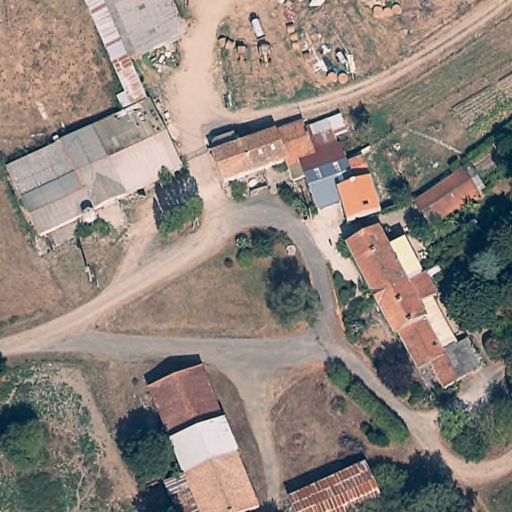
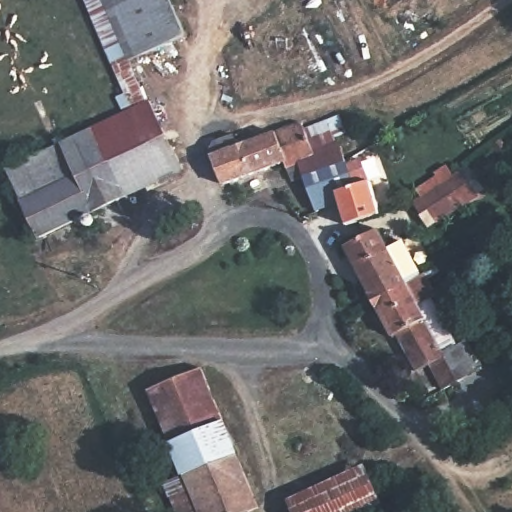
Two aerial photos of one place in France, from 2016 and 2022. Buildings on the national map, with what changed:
unchanged [(117,62),(90,0),(107,0),(130,56),(117,62)]
unchanged [(131,61),(130,56),(107,0),(172,0),(188,37),(131,61)]
unchanged [(25,202),(74,177),(80,174),(65,144),(89,132),(151,104),(186,171),(45,238),(25,202)]
unchanged [(340,210),(323,216),(307,181),(295,185),(289,166),(229,188),(212,148),(234,140),(240,153),(305,130),(318,157),(340,149),(358,191),(372,187),(384,219),(349,230),(340,210)]
unchanged [(9,171),(59,147),(74,177),(25,202),(9,171)]
unchanged [(429,211),(422,215),(418,203),(451,182),(463,171),(479,197),(467,206),(439,226),(429,211)]
unchanged [(509,221),(512,219),(512,225),(509,221)]
unchanged [(350,255),(384,237),(393,254),(405,249),(423,282),(378,308),(350,255)]
unchanged [(445,392),(434,370),(419,375),(399,341),(397,343),(378,308),(423,282),(429,279),(439,296),(432,302),(455,339),(450,342),(457,353),(473,346),(484,367),(468,381),(445,392)]
unchanged [(187,478),(185,477),(149,397),(204,376),(239,461),(187,478)]
unchanged [(261,512),(178,512),(167,483),(185,477),(187,478),(239,461),(261,512)]
unchanged [(382,508),(373,512),(297,512),(293,502),(365,470),(379,505),(382,508)]

